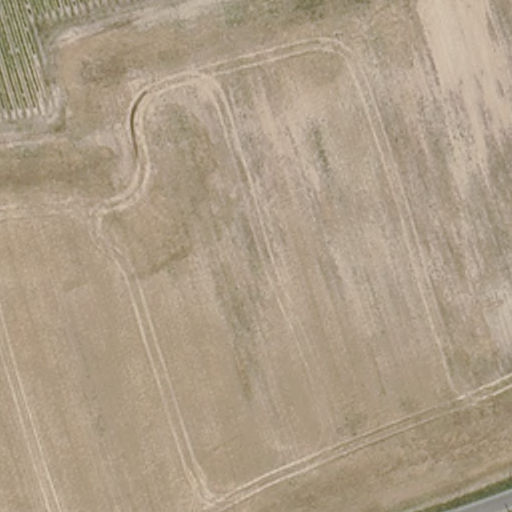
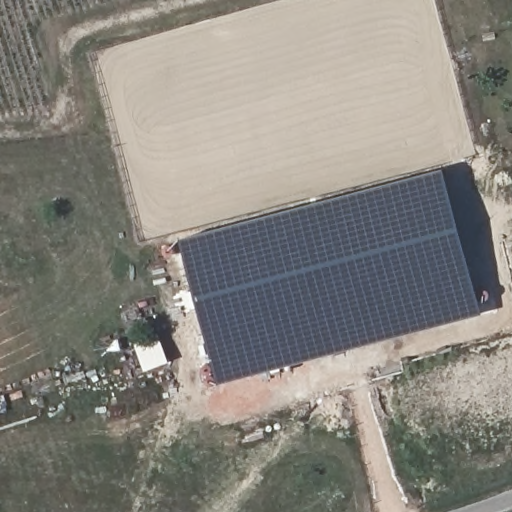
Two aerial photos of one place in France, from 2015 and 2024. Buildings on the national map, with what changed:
new [(180,239),(444,168),(484,314),(219,383),(180,239)]

